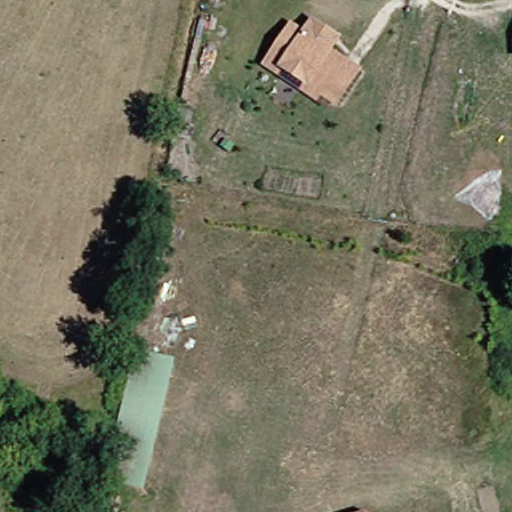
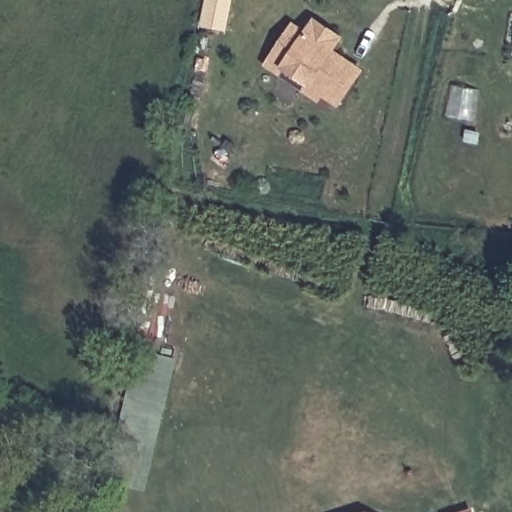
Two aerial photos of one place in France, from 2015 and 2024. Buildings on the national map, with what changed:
unchanged [(264,72),(268,66),(288,32),(302,40),(307,32),(310,26),(336,42),(333,48),(328,56),(358,75),(338,109),(320,98),(316,105),(264,72)]
unchanged [(137,348),(177,357),(149,490),(109,481),(137,348)]

